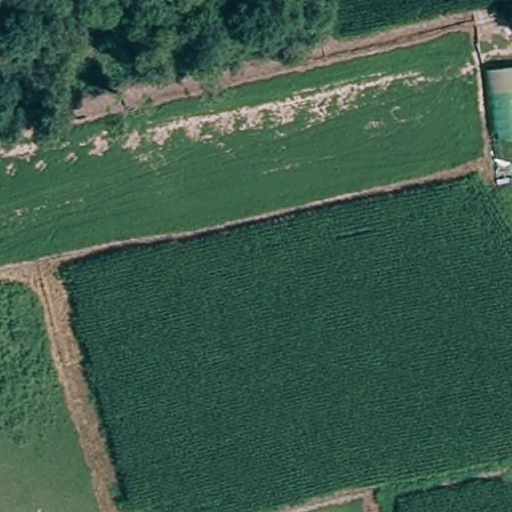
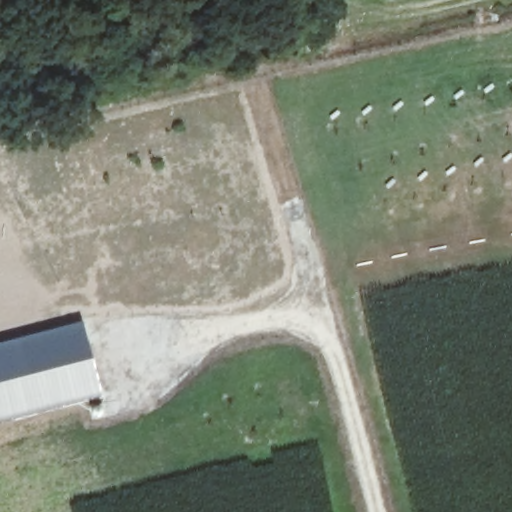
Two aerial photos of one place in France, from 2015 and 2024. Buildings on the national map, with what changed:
demolished [(512,178),(502,180),(490,67),(512,65),(512,178)]
new [(83,320),(102,394),(35,410),(0,419),(0,342),(83,320)]

